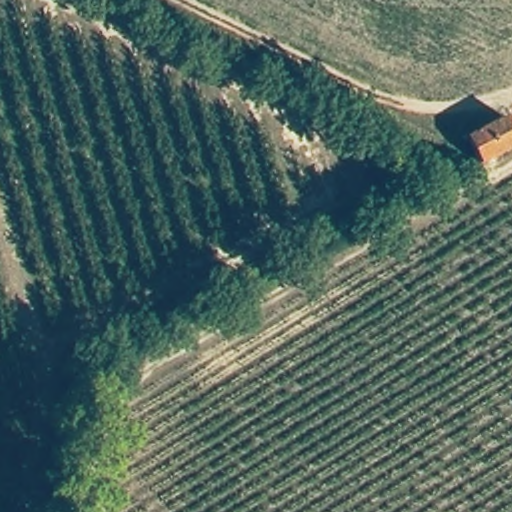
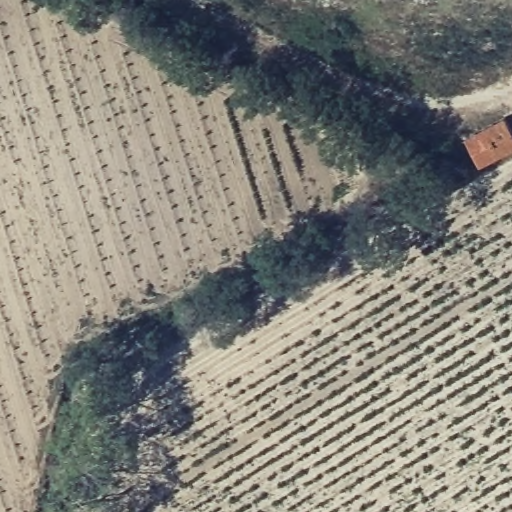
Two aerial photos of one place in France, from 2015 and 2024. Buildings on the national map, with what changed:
unchanged [(465,137),(467,136),(495,121),(499,120),(503,117),(511,130),(512,132),(512,147),(481,165),(474,157),(471,152),(465,137)]

